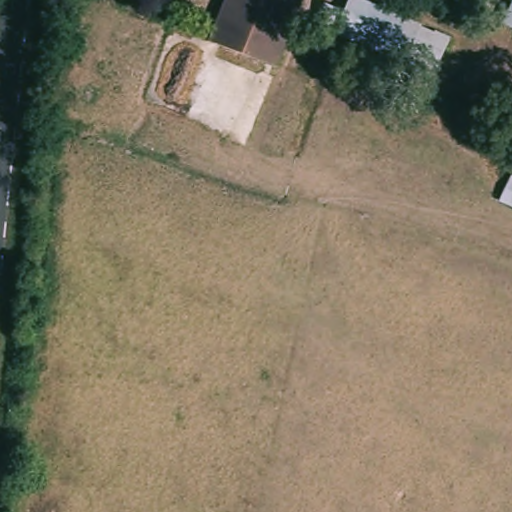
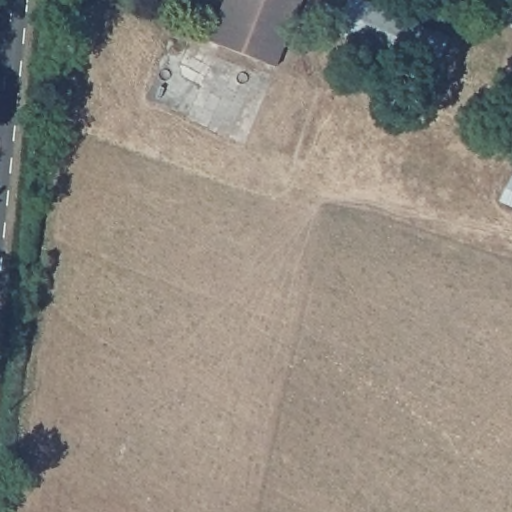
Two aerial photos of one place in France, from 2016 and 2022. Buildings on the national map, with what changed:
unchanged [(288,34),(275,65),(208,38),(221,6),(223,0),(302,0),(288,34)]
unchanged [(507,0),(512,0),(512,32),(497,25),(507,0)]
unchanged [(354,2),(450,42),(437,75),(341,34),(354,2)]
unchanged [(512,210),(495,202),(508,175),(512,177),(512,210)]

